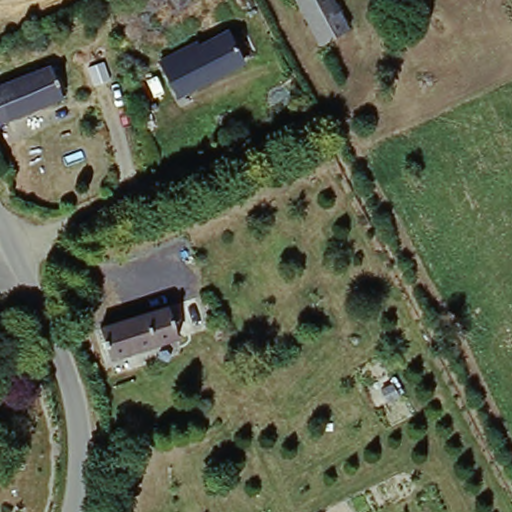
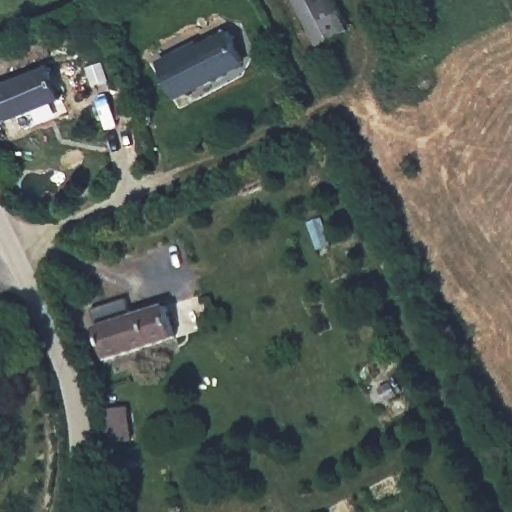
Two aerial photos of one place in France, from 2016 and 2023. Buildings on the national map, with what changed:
unchanged [(324,49),(299,0),(335,0),(352,35),(324,49)]
unchanged [(202,45),(204,51),(232,36),(248,65),(181,100),(163,69),(202,45)]
unchanged [(51,70),(63,102),(0,128),(0,90),(51,70)]
unchanged [(174,308),(183,337),(116,362),(105,329),(174,308)]

